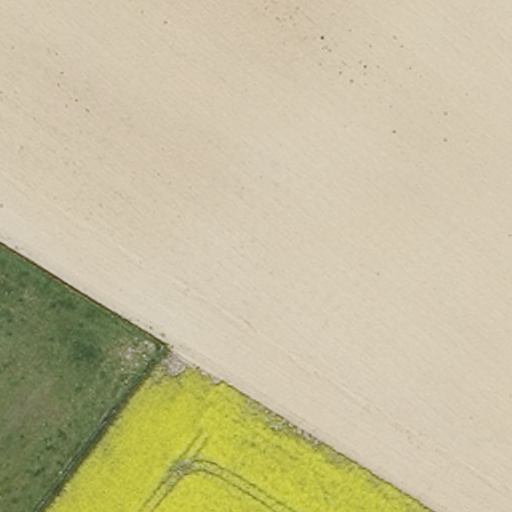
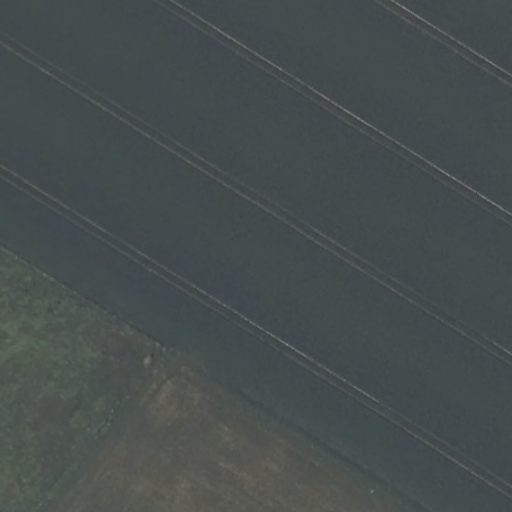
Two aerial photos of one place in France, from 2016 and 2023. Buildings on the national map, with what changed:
[]

